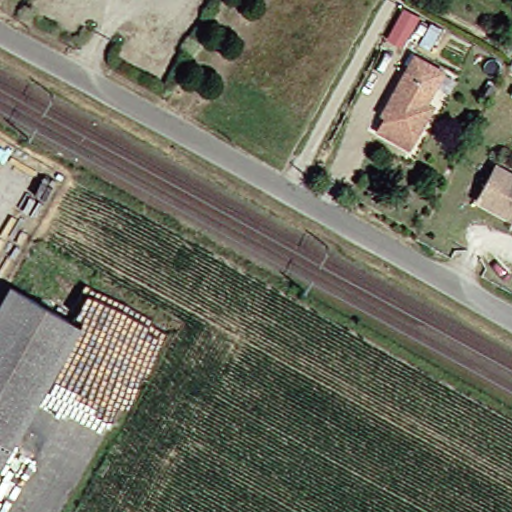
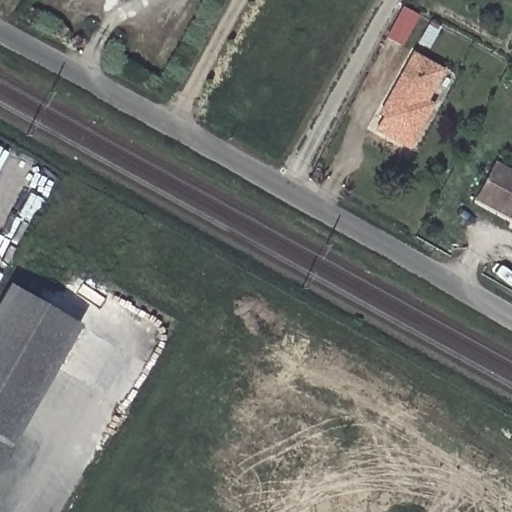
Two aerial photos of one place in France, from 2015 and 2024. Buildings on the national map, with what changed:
unchanged [(373,112),(407,53),(437,70),(419,101),(427,105),(401,149),(369,132),(378,115),(373,112)]
unchanged [(482,196),(500,162),(512,168),(512,212),(482,196)]
unchanged [(0,449),(0,290),(5,282),(73,321),(8,432),(29,443),(19,460),(0,449)]

